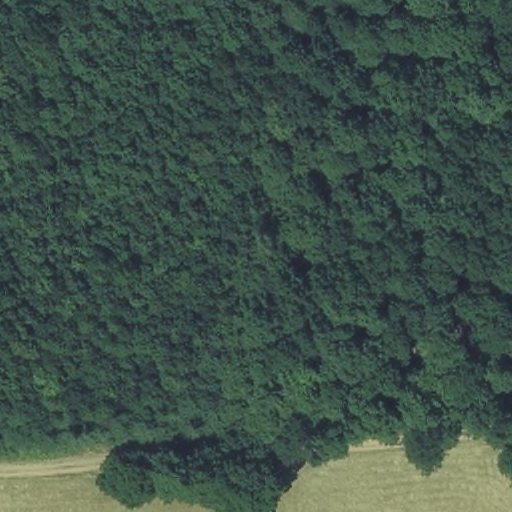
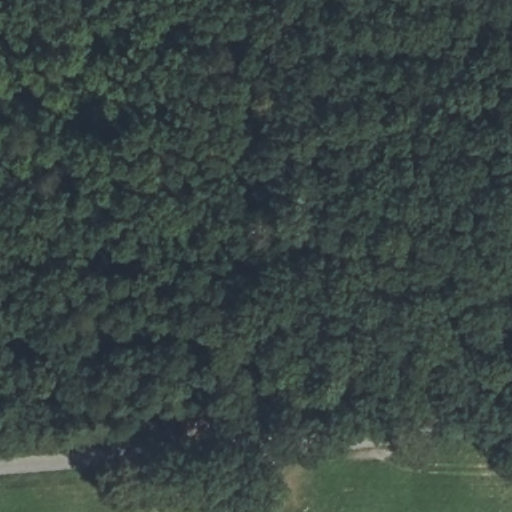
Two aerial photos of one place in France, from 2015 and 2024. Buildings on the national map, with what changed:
unchanged [(235,499),(271,490),(274,512),(237,512),(235,499)]

